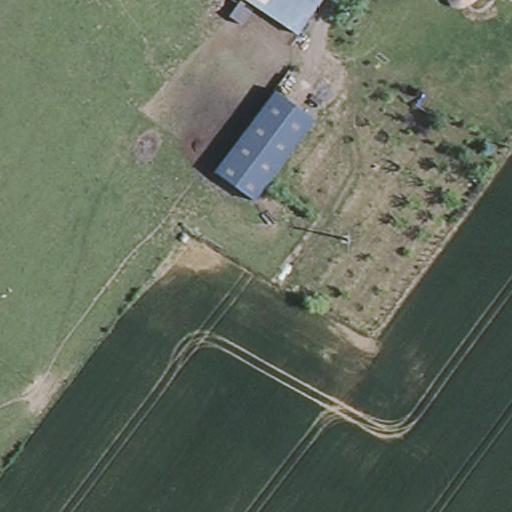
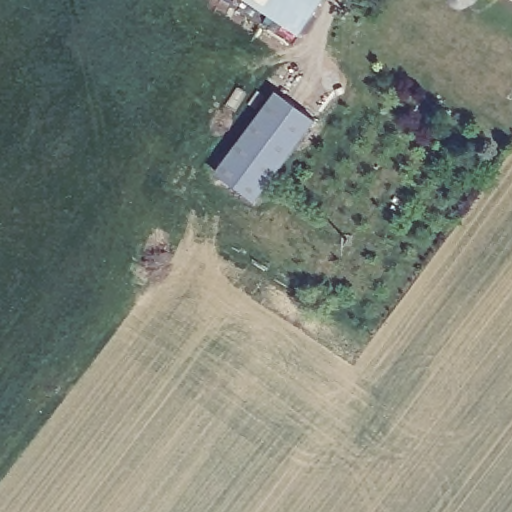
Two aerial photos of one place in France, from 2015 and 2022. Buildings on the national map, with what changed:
unchanged [(282,0),(274,11),(257,0),(282,0)]
unchanged [(318,0),(299,27),(274,11),(282,0),(318,0)]
unchanged [(315,121),(255,202),(215,175),(274,94),(315,121)]

